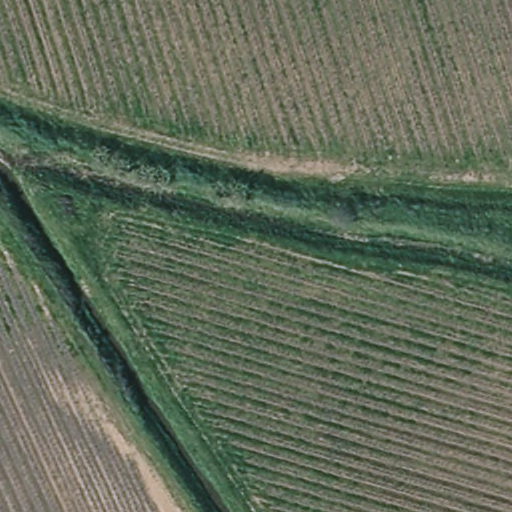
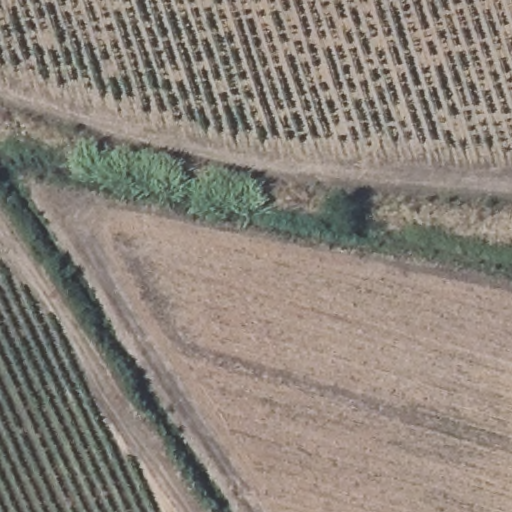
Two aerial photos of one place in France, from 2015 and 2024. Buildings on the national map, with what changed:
[]

